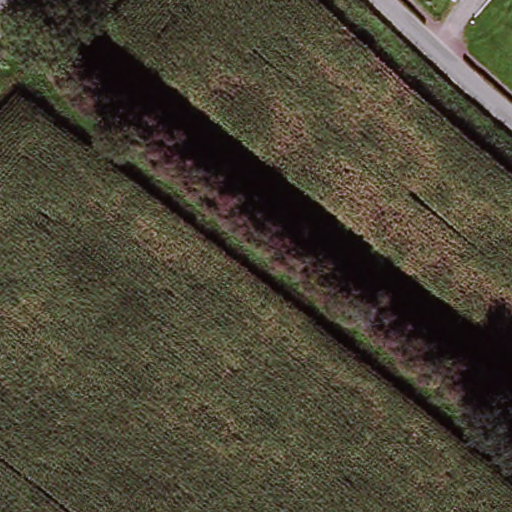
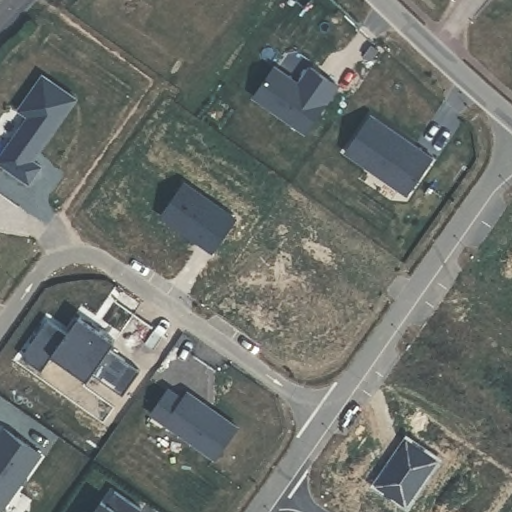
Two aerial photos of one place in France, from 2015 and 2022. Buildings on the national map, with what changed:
new [(297,81),(309,63),(339,86),(307,133),(253,95),(274,64),(297,81)]
new [(32,159),(41,166),(29,182),(0,161),(0,156),(28,114),(19,108),(43,73),(75,98),(32,159)]
new [(435,158),(408,195),(346,150),(369,112),(435,158)]
new [(68,332),(76,321),(94,335),(99,328),(114,341),(109,346),(140,369),(121,393),(94,372),(88,379),(53,354),(43,369),(21,354),(47,318),(68,332)]
new [(236,426),(216,458),(164,422),(186,390),(236,426)]
new [(141,508),(137,512),(94,512),(103,499),(113,488),(141,508)]

